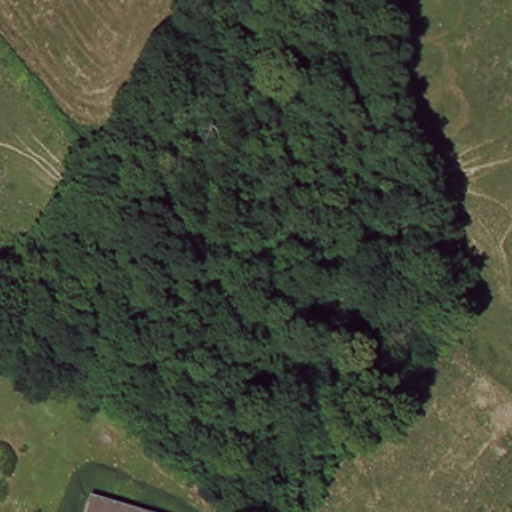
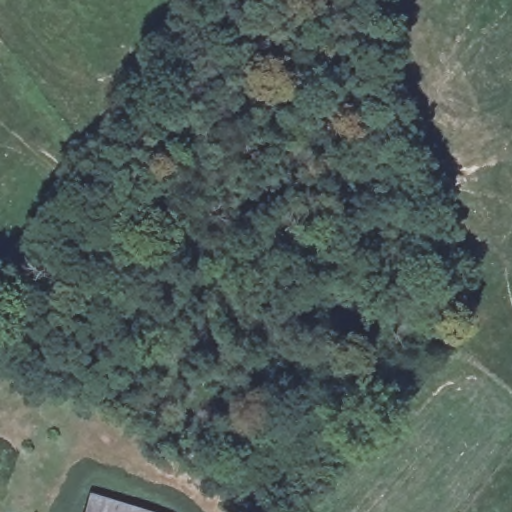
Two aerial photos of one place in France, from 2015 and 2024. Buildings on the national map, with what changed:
unchanged [(96,512),(97,508),(107,512),(96,512)]

